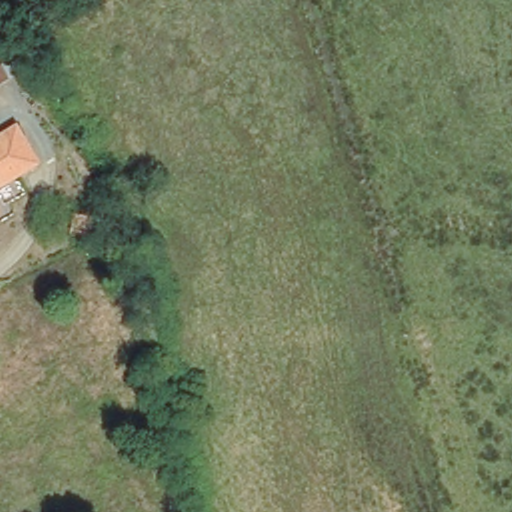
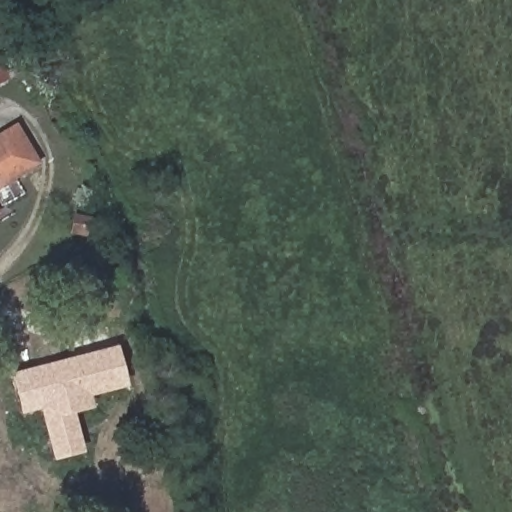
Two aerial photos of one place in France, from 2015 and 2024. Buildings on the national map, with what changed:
unchanged [(39,157),(0,180),(0,129),(17,120),(39,157)]
new [(55,460),(41,409),(21,414),(11,373),(117,345),(129,387),(92,396),(94,408),(75,412),(85,452),(55,460)]

